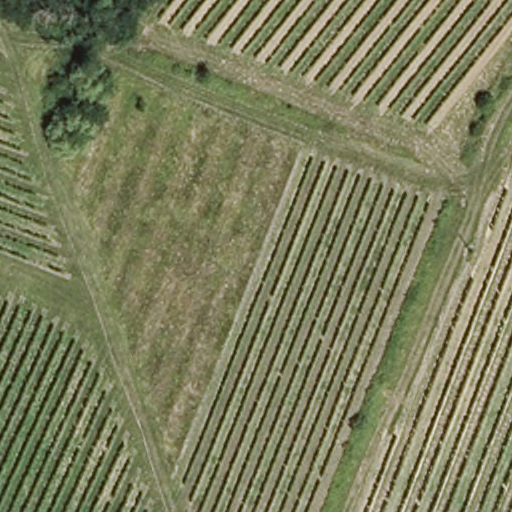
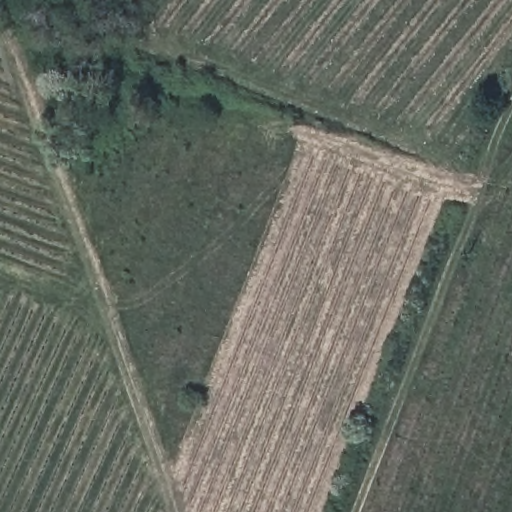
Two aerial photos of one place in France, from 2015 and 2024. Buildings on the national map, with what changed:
[]

